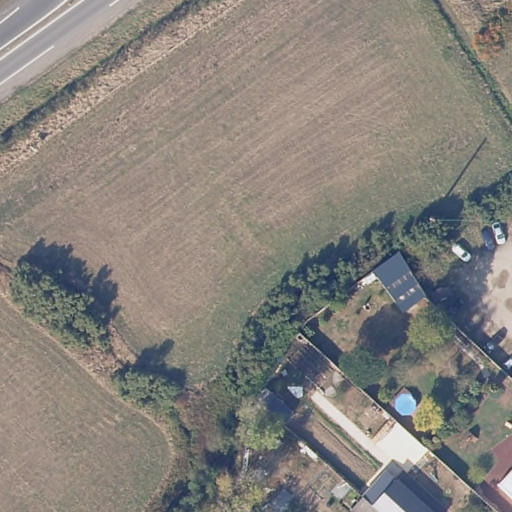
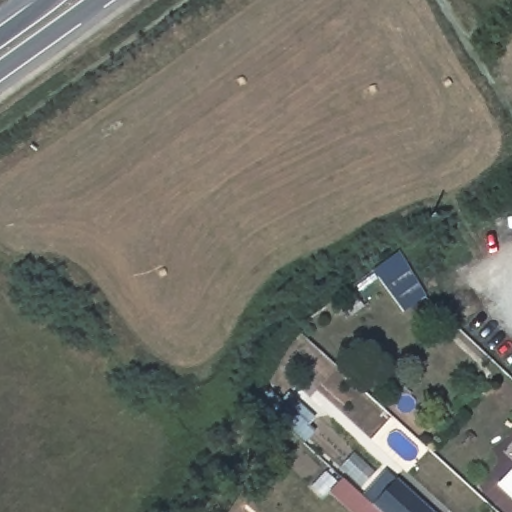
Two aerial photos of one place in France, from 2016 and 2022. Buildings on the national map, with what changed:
unchanged [(384,474),(427,512),(374,512),(373,511),(368,507),(361,500),(384,474)]
unchanged [(361,500),(368,507),(373,511),(374,512),(348,512),(360,499),(361,500)]

